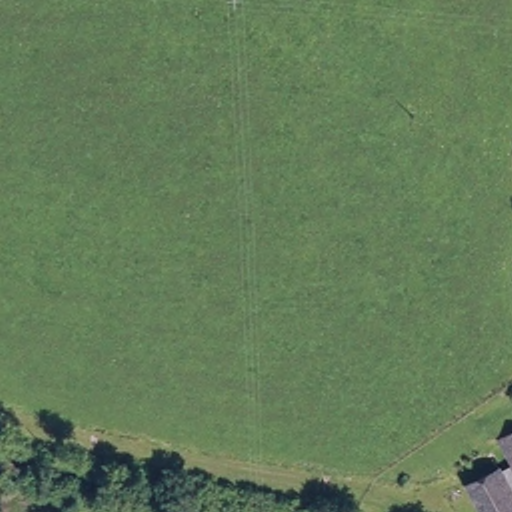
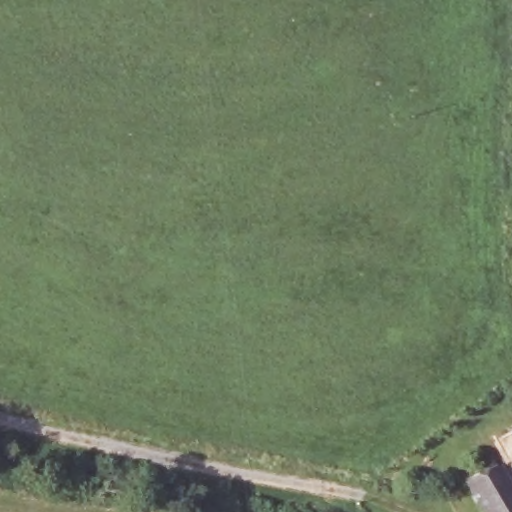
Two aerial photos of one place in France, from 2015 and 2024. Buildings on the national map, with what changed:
unchanged [(512,428),(512,466),(495,437),(512,428)]
unchanged [(467,484),(501,466),(512,486),(512,512),(483,512),(467,484)]

